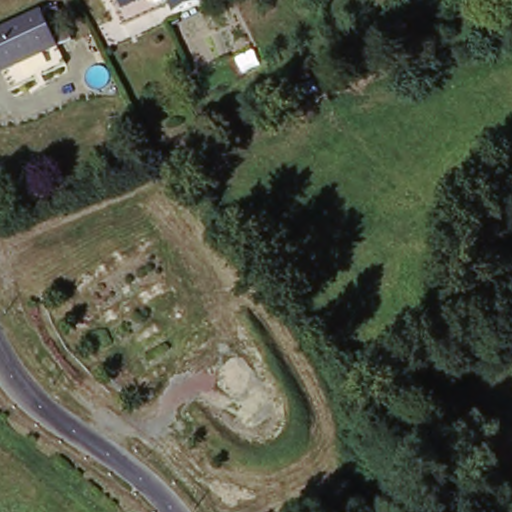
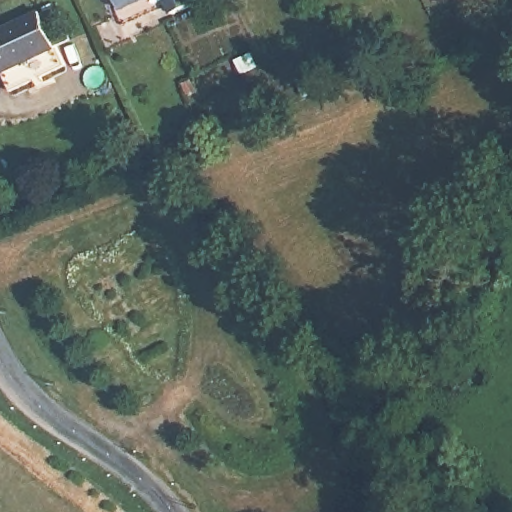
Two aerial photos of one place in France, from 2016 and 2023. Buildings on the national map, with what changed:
unchanged [(118,0),(144,0),(122,9),(118,0)]
unchanged [(176,12),(170,0),(196,0),(197,3),(176,12)]
unchanged [(0,69),(0,37),(39,18),(55,11),(72,43),(55,53),(4,77),(0,69)]
unchanged [(367,84),(357,91),(351,78),(363,73),(367,84)]

